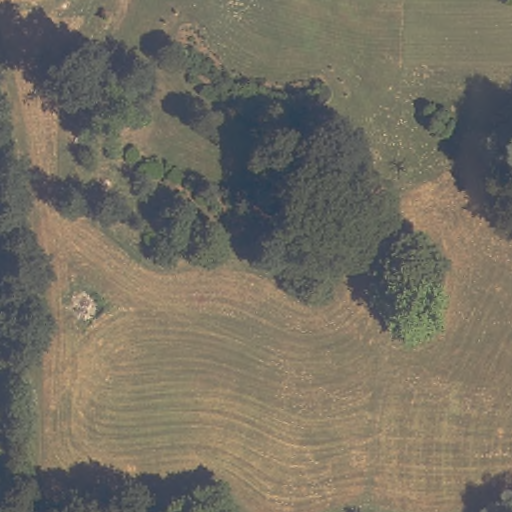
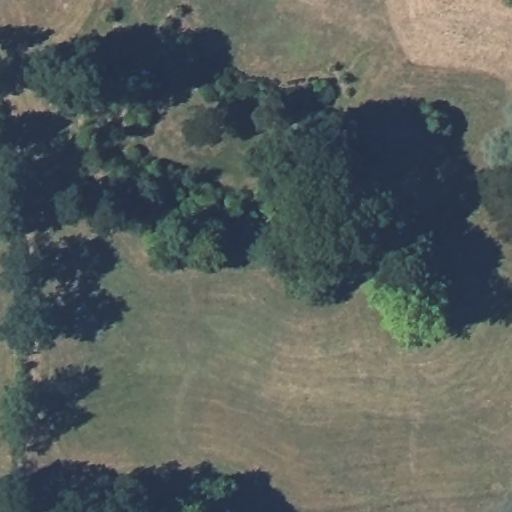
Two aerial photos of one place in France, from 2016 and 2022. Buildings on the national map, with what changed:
[]

